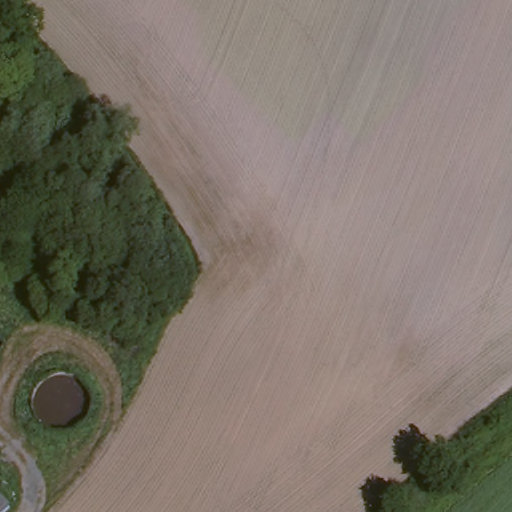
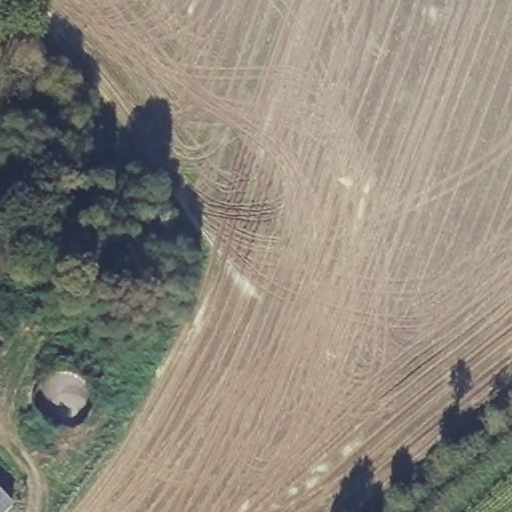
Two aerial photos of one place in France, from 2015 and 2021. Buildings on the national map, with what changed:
unchanged [(1,512),(0,512),(0,491),(11,502),(1,512)]

